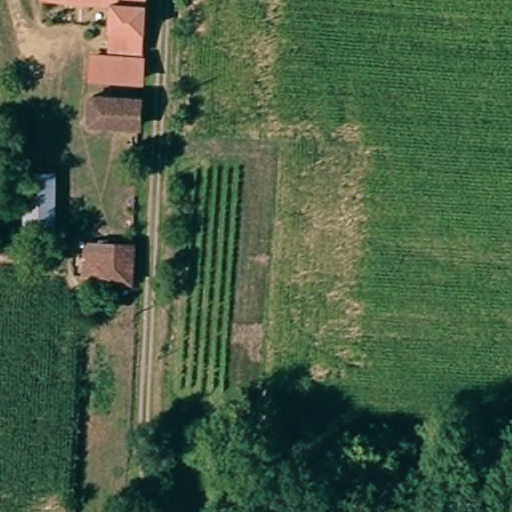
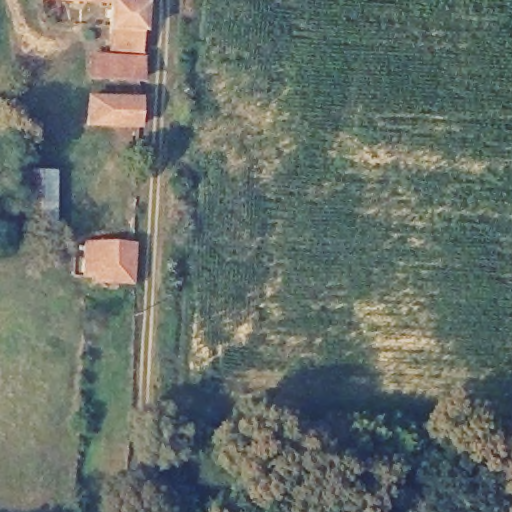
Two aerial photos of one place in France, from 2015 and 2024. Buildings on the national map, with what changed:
unchanged [(150,0),(147,29),(146,43),(112,41),(112,36),(113,5),(113,4),(87,0),(150,0)]
unchanged [(144,59),(144,77),(143,82),(97,79),(92,78),(95,48),(110,49),(145,52),(144,59)]
unchanged [(145,126),(99,122),(97,122),(99,97),(101,97),(147,101),(147,103),(145,126)]
unchanged [(60,236),(34,237),(33,179),(60,179),(60,236)]
unchanged [(135,280),(91,278),(92,241),(137,242),(135,280)]

